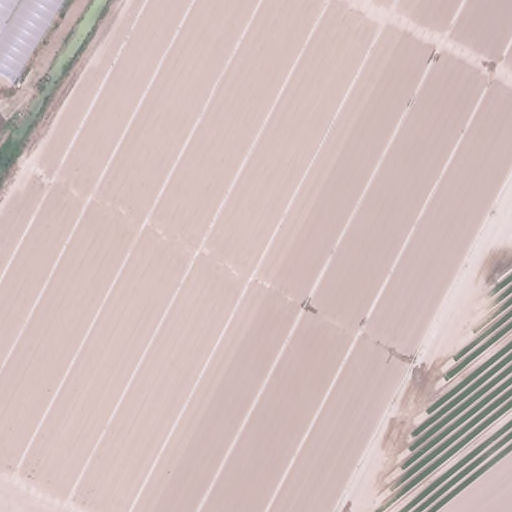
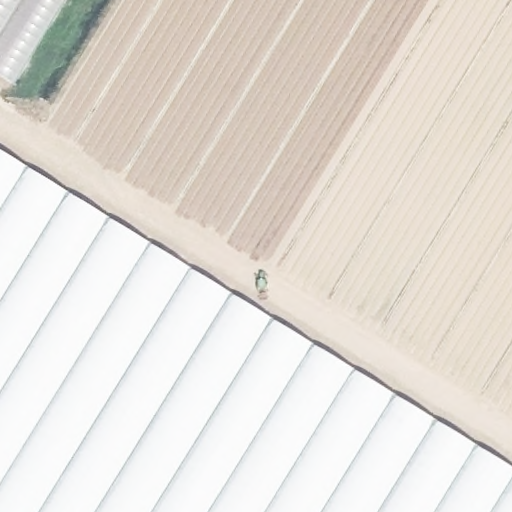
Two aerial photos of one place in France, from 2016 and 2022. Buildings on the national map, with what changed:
unchanged [(0,84),(0,0),(73,0),(16,93),(0,84)]
new [(0,150),(512,467),(512,512),(0,512),(0,150)]

